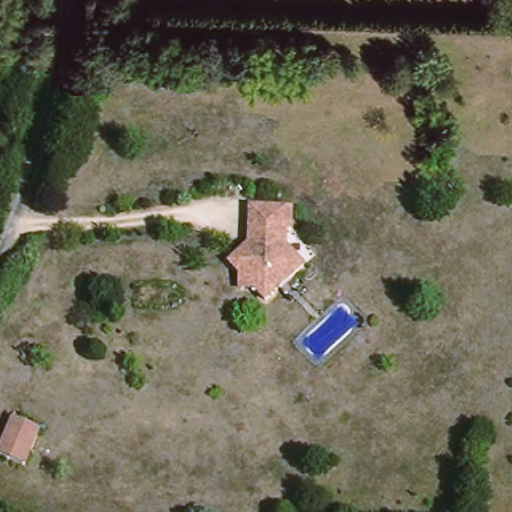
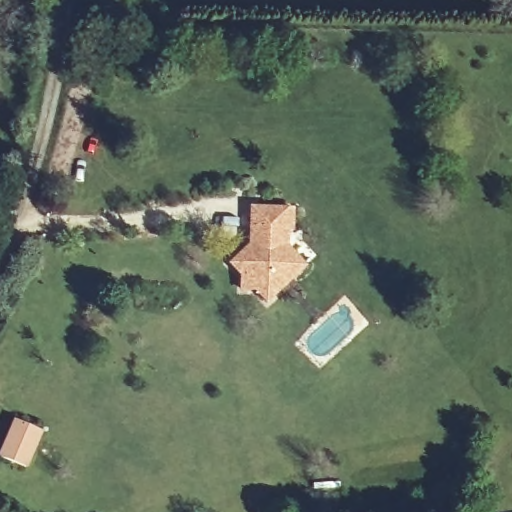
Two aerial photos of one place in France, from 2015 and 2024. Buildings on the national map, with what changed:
unchanged [(290,210),(290,231),(285,231),(285,248),(302,267),(264,303),(252,291),(239,291),(240,279),(227,264),(249,245),(249,226),(249,209),(290,210)]
unchanged [(19,468),(0,460),(0,447),(11,421),(35,431),(19,468)]

